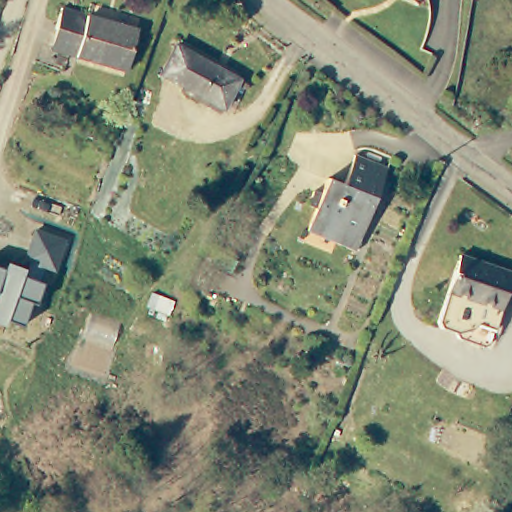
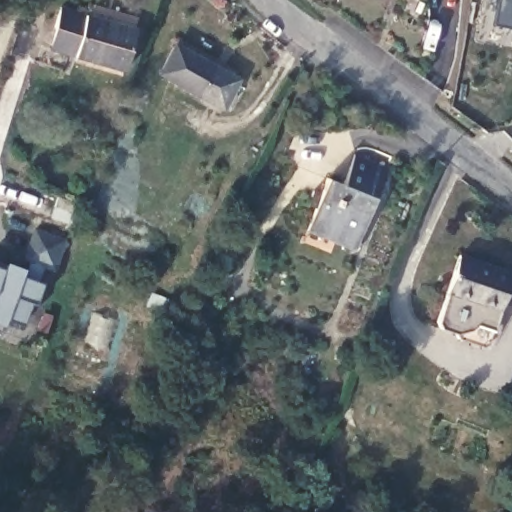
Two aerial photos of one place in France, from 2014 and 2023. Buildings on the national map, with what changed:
new [(499,0),(512,0),(512,27),(493,24),(499,0)]
unchanged [(55,26),(61,5),(134,27),(122,69),(74,54),(50,46),(55,26)]
unchanged [(235,79),(220,107),(156,70),(172,43),(235,79)]
unchanged [(386,164),(357,238),(312,221),(318,205),(308,202),(313,189),(322,192),(330,173),(348,179),(358,154),(386,164)]
unchanged [(66,240),(55,272),(44,269),(37,282),(42,284),(35,304),(30,303),(21,324),(5,319),(3,325),(0,324),(0,268),(1,269),(4,262),(18,267),(35,228),(66,240)]
unchanged [(512,303),(498,299),(488,329),(476,333),(457,328),(455,320),(440,316),(436,310),(458,249),(512,267),(512,303)]

